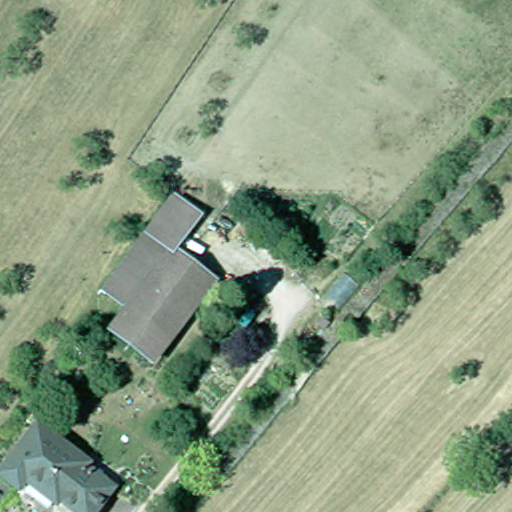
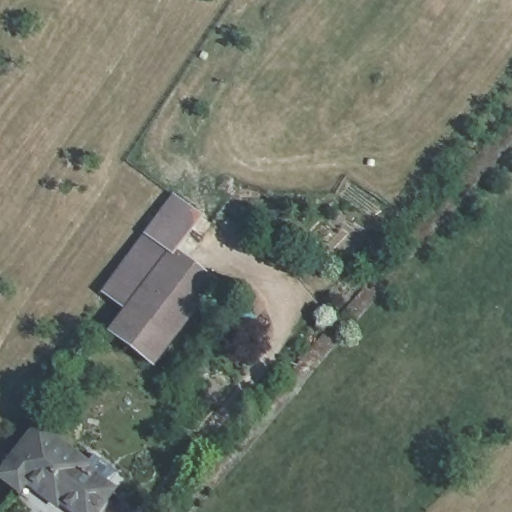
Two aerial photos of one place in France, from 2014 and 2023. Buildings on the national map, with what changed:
unchanged [(128,345),(107,330),(124,311),(97,291),(167,194),(198,216),(170,251),(209,282),(152,355),(147,360),(128,345)]
unchanged [(53,498),(22,475),(15,483),(0,472),(0,466),(32,423),(81,458),(79,461),(106,481),(108,483),(87,512),(55,512),(47,506),(53,498)]

